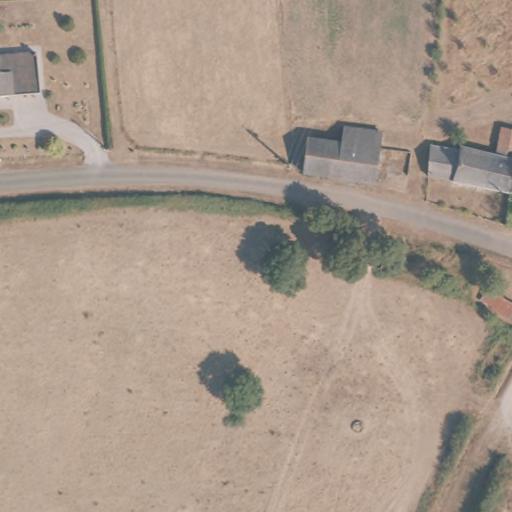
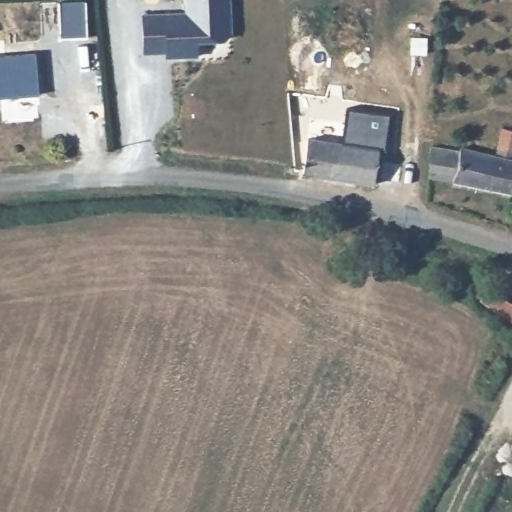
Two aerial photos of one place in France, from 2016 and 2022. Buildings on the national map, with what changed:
new [(184,10),(184,0),(231,0),(233,33),(221,40),(197,41),(197,55),(164,57),(164,52),(143,52),(142,13),(163,11),(184,10)]
unchanged [(36,55),(37,98),(0,100),(0,57),(36,55)]
unchanged [(384,114),(384,150),(382,167),(379,190),(307,177),(310,141),(345,145),(345,109),(384,114)]
unchanged [(504,137),(512,138),(512,198),(420,184),(425,155),(452,159),(453,155),(490,160),(492,137),(504,137)]
unchanged [(460,293),(443,281),(451,256),(471,268),(460,293)]
unchanged [(505,319),(502,318),(481,310),(468,296),(476,281),(502,299),(512,305),(512,331),(510,331),(505,319)]

